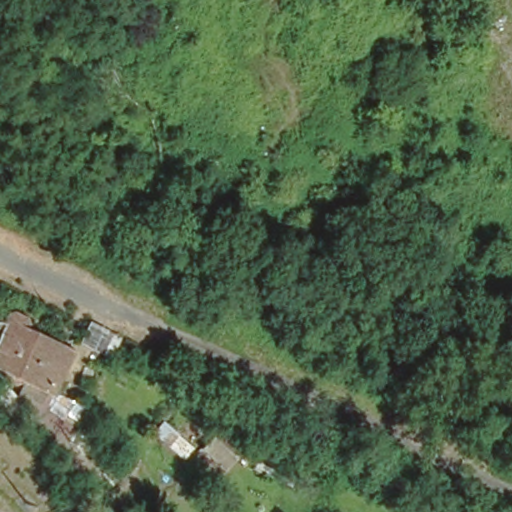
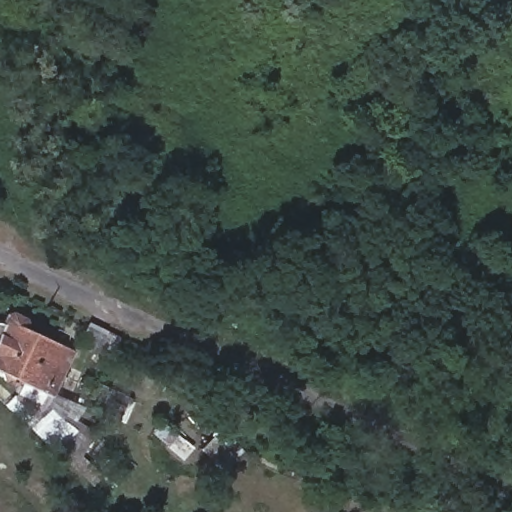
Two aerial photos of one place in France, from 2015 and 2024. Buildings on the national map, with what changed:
unchanged [(0,369),(0,329),(7,315),(77,350),(55,397),(0,369)]
unchanged [(169,448),(149,431),(160,419),(180,435),(169,448)]

